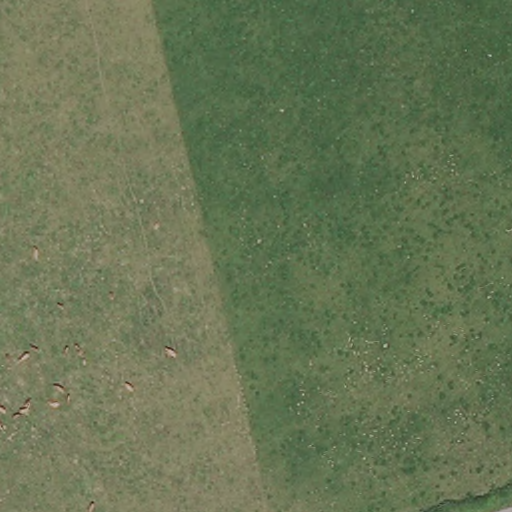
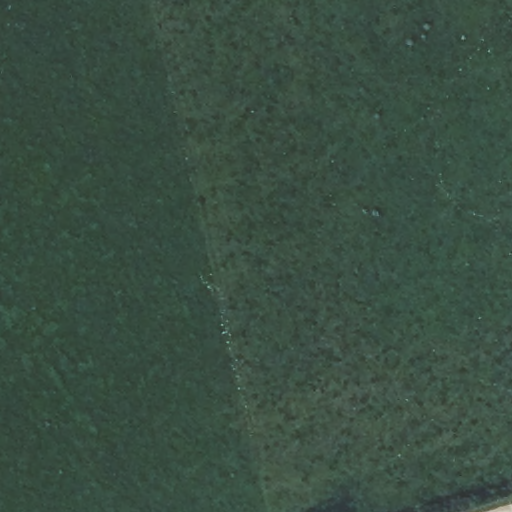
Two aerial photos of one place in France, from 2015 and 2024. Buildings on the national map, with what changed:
[]

